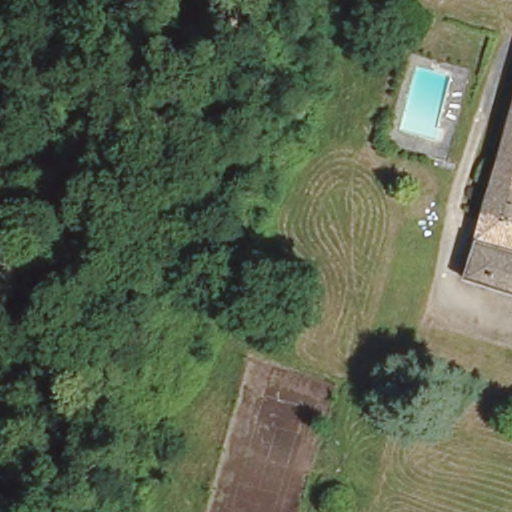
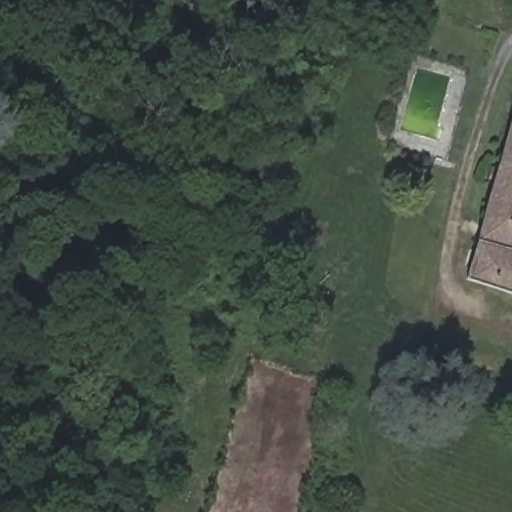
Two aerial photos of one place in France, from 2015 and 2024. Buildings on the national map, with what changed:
unchanged [(464,282),(512,124),(512,298),(464,282)]

